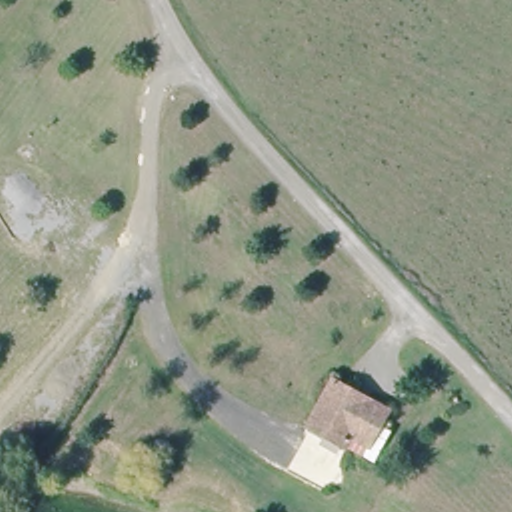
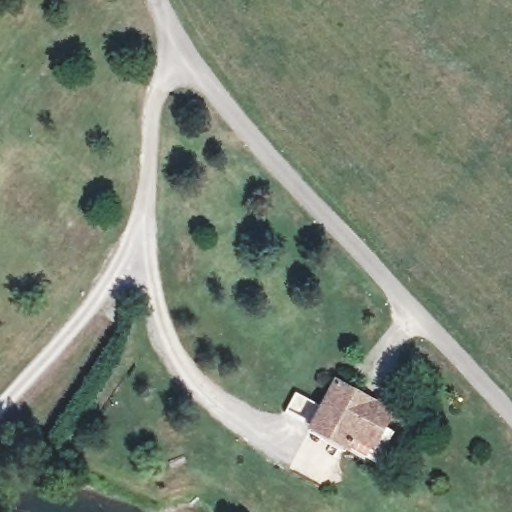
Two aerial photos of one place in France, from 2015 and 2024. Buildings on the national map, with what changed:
unchanged [(309,433),(313,422),(331,377),(353,386),(349,398),(364,404),(366,400),(384,407),(370,446),(346,436),(341,448),(309,433)]

